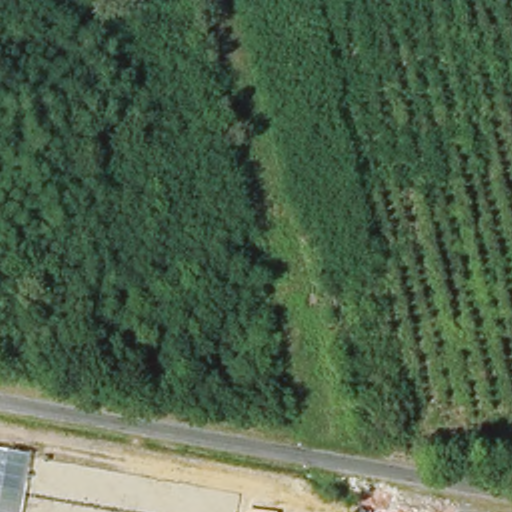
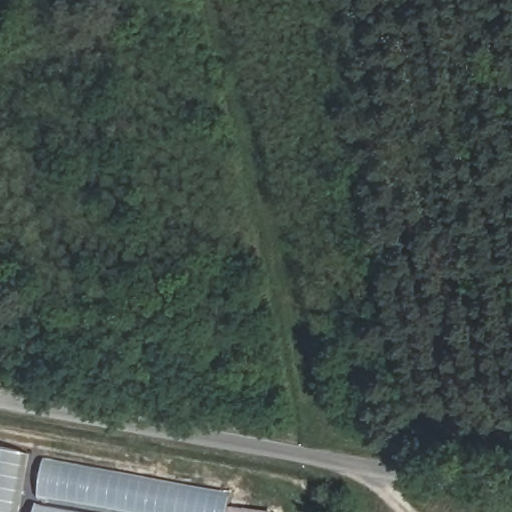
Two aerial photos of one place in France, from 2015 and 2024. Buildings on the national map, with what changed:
unchanged [(0,449),(28,454),(18,512),(0,512),(0,449)]
new [(38,496),(45,458),(230,493),(228,507),(245,509),(274,512),(127,512),(38,496)]
new [(37,504),(79,512),(36,512),(37,504)]

